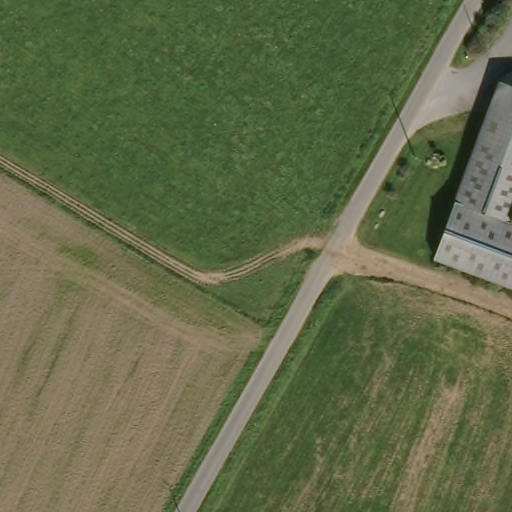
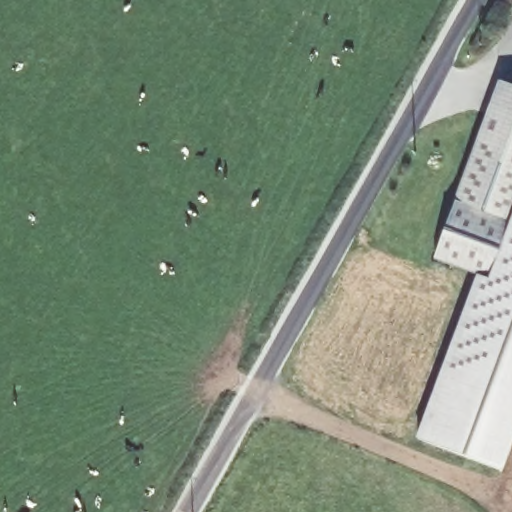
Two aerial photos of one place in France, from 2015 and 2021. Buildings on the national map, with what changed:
unchanged [(434,256),(486,123),(512,56),(512,287),(434,256)]
new [(512,286),(512,446),(503,472),(416,438),(478,273),(512,286)]

